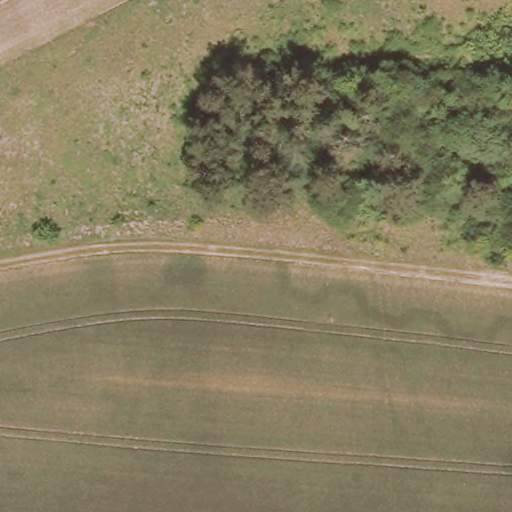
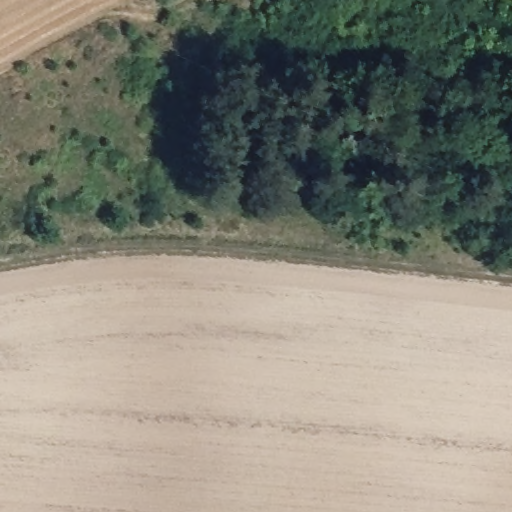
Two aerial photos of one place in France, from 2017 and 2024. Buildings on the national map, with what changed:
[]

